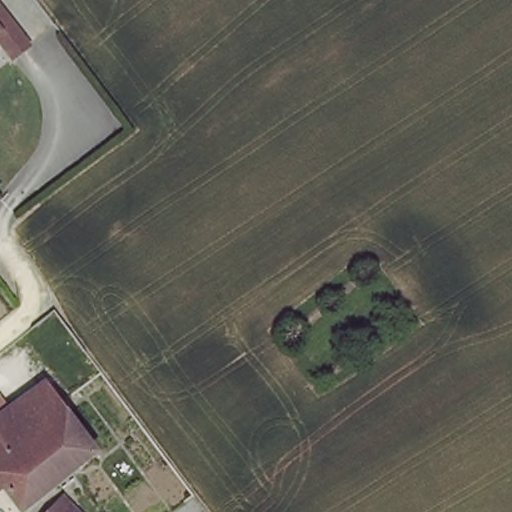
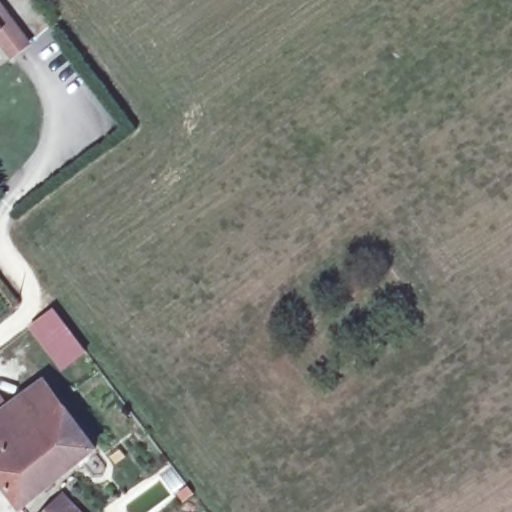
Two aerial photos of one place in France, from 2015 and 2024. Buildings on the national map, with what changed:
unchanged [(28,44),(11,55),(0,43),(0,11),(28,44)]
new [(30,328),(54,309),(88,354),(64,372),(30,328)]
unchanged [(1,415),(42,378),(99,445),(26,506),(0,476),(0,414),(1,415)]
unchanged [(67,512),(61,512),(65,509),(67,512)]

